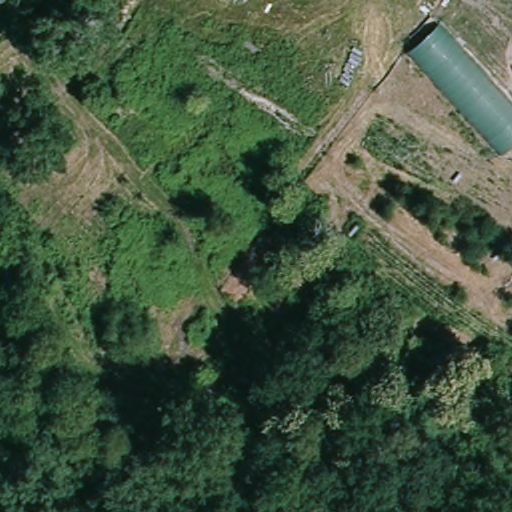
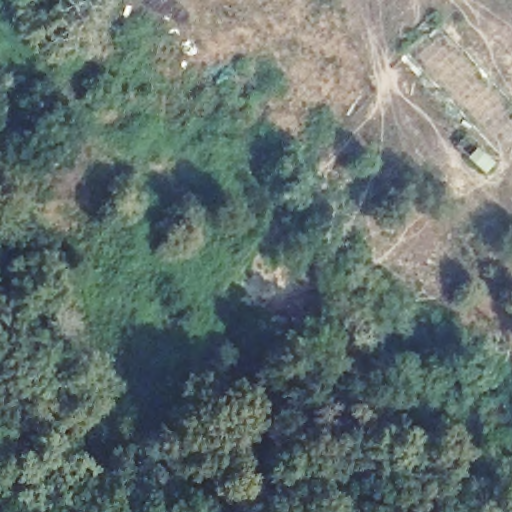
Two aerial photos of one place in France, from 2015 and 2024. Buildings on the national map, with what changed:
unchanged [(512,147),(503,155),(409,52),(439,24),(512,104),(512,147)]

